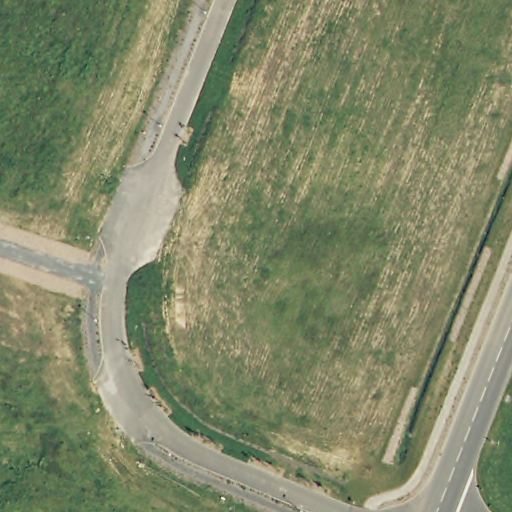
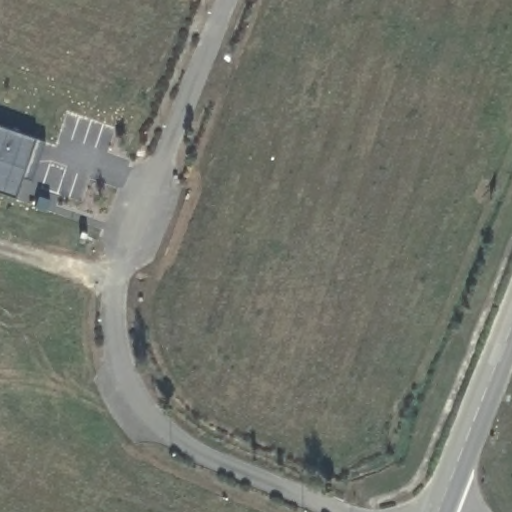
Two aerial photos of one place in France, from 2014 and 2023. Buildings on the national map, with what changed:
new [(24,177),(15,199),(0,194),(0,127),(36,140),(44,142),(31,181),(24,177)]

